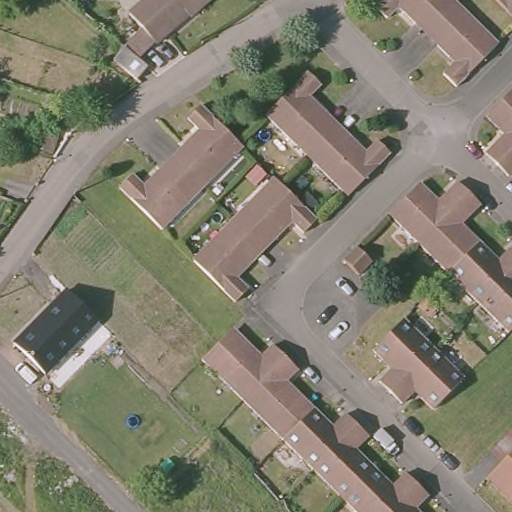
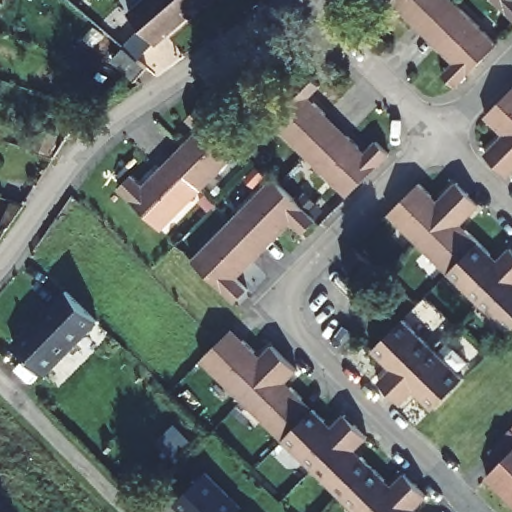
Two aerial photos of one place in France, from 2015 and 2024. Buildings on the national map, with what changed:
unchanged [(136,80),(115,63),(126,49),(121,43),(140,27),(124,10),(135,0),(196,0),(133,54),(146,66),(136,80)]
unchanged [(398,6),(387,14),(375,2),(377,0),(450,0),(421,31),(398,6)]
unchanged [(495,46),(457,84),(453,83),(442,71),(451,63),(421,31),(450,0),(451,0),(495,46)]
unchanged [(490,0),(512,0),(512,21),(490,0)]
unchanged [(260,112),(302,72),(314,84),(304,94),(330,119),(361,150),(371,140),(386,153),(346,195),(299,150),(260,112)]
unchanged [(485,147),(482,145),(487,141),(501,128),(499,126),(486,112),(512,86),(512,138),(494,157),(485,147)]
unchanged [(194,132),(184,120),(197,106),(239,147),(200,188),(159,232),(117,191),(130,178),(141,187),(169,158),(194,132)]
unchanged [(512,138),(512,165),(506,170),(497,161),(494,157),(512,138)]
unchanged [(270,179),(314,221),(301,233),(290,223),(264,249),(236,277),(249,290),(235,305),(190,262),(232,218),(270,179)]
unchanged [(389,220),(419,189),(432,201),(454,182),(465,192),(412,243),(389,220)]
unchanged [(479,205),(457,226),(477,247),(447,277),(416,246),(412,243),(465,192),(479,205)]
unchanged [(365,254),(352,268),(338,255),(351,241),(365,254)]
unchanged [(497,266),(510,253),(512,255),(512,271),(477,307),(447,277),(477,247),(497,266)]
unchanged [(508,337),(477,307),(512,271),(512,333),(508,337)]
unchanged [(97,323),(44,376),(11,342),(65,291),(97,323)]
unchanged [(381,375),(390,365),(372,345),(400,316),(430,344),(389,384),(381,375)]
unchanged [(218,338),(229,329),(256,355),(269,344),(280,356),(236,400),(197,361),(218,338)]
unchanged [(430,344),(461,375),(432,404),(413,387),(402,398),(389,384),(430,344)]
unchanged [(280,356),(292,368),(283,377),(311,405),(276,440),(236,400),(280,356)]
unchanged [(327,423),(341,411),(351,421),(305,468),(276,440),(311,405),(327,423)]
unchanged [(351,421),(362,433),(350,446),(368,464),(335,498),(305,468),(351,421)]
unchanged [(488,474),(503,459),(487,448),(512,423),(512,501),(488,474)]
unchanged [(368,464),(389,484),(401,472),(409,480),(378,512),(348,512),(335,498),(368,464)]
new [(206,470),(244,507),(239,512),(183,512),(174,502),(206,470)]
unchanged [(422,492),(410,506),(416,512),(378,512),(409,480),(422,492)]

